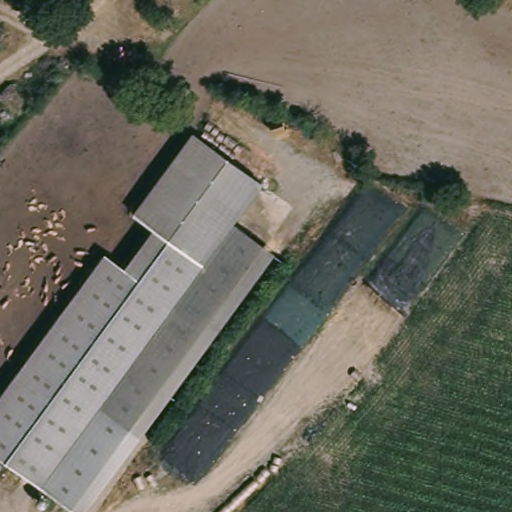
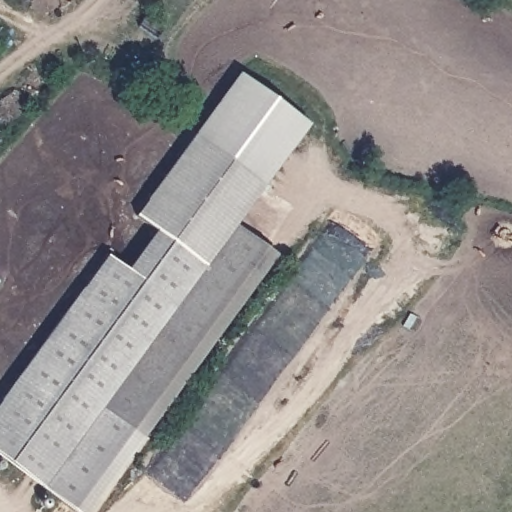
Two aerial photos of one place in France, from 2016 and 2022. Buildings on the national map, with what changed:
new [(195,132),(238,72),(306,121),(263,181),(195,132)]
unchanged [(0,401),(108,253),(129,268),(157,229),(136,214),(195,132),(263,181),(233,222),(276,253),(89,511),(88,512),(79,512),(0,455),(0,401)]

